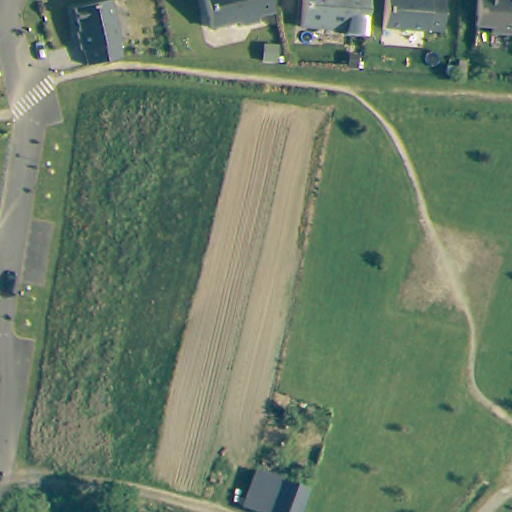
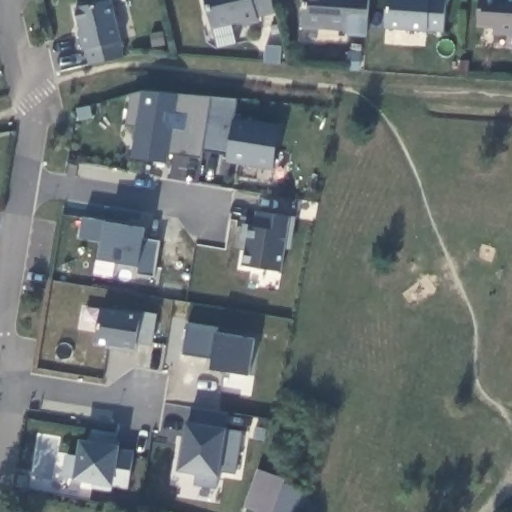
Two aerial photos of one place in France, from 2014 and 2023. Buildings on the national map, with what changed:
unchanged [(83,49),(80,50),(77,32),(79,32),(72,8),(110,0),(121,55),(86,64),(83,49)]
unchanged [(236,25),(212,31),(204,0),(245,0),(241,27),(236,25)]
unchanged [(245,0),(270,0),(273,14),(257,18),(257,23),(241,27),(245,0)]
unchanged [(303,0),(367,0),(365,36),(347,35),(347,31),(302,30),(303,0)]
unchanged [(384,30),(386,0),(415,0),(411,31),(384,30)]
unchanged [(415,0),(445,0),(443,33),(411,31),(415,0)]
unchanged [(472,0),(512,0),(512,33),(487,30),(487,25),(470,24),(472,0)]
new [(227,115),(209,113),(201,158),(170,154),(168,164),(130,159),(135,129),(124,127),(129,94),(139,91),(178,94),(213,97),(230,100),(227,115)]
new [(275,170),(225,163),(232,119),(281,125),(275,170)]
new [(288,249),(285,247),(280,273),(241,266),(247,225),(252,225),(255,211),(294,218),(288,249)]
new [(153,277),(136,275),(137,266),(99,260),(102,242),(79,239),(83,219),(106,222),(147,229),(144,239),(160,241),(153,277)]
new [(152,347),(138,345),(135,354),(107,350),(107,347),(94,345),(100,307),(123,312),(124,308),(157,315),(152,347)]
new [(249,375),(210,370),(211,360),(197,356),(201,331),(217,333),(254,339),(249,375)]
new [(222,428),(227,430),(244,432),(235,475),(221,473),(220,477),(217,488),(192,485),(194,473),(177,469),(185,421),(188,422),(191,407),(227,412),(222,428)]
new [(128,489),(112,487),(110,492),(90,490),(92,483),(74,481),(61,479),(65,453),(78,456),(80,440),(121,446),(120,450),(133,451),(128,489)]
unchanged [(285,475),(287,473),(289,472),(291,472),(293,472),(296,473),(297,475),(298,477),(298,480),(298,482),(297,487),(305,490),(302,497),(298,512),(253,512),(243,509),(254,473),(278,481),(282,482),(283,477),(285,475)]

